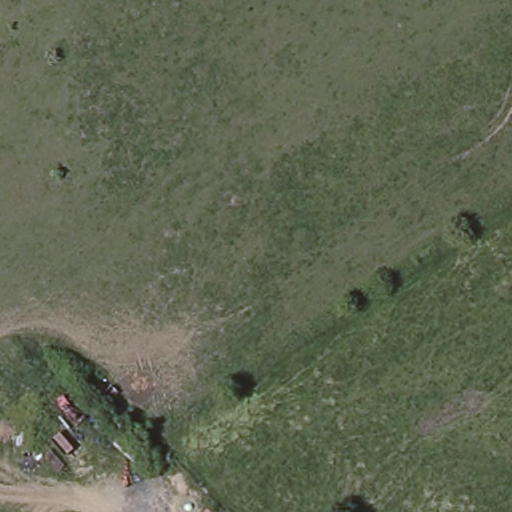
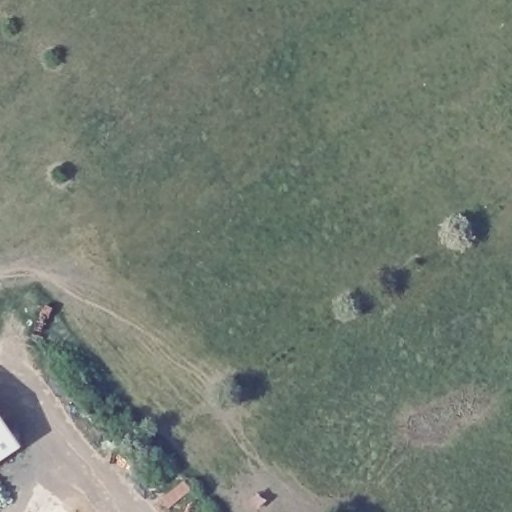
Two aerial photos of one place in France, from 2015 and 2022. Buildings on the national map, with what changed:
new [(17,445),(0,457),(0,420),(17,445)]

